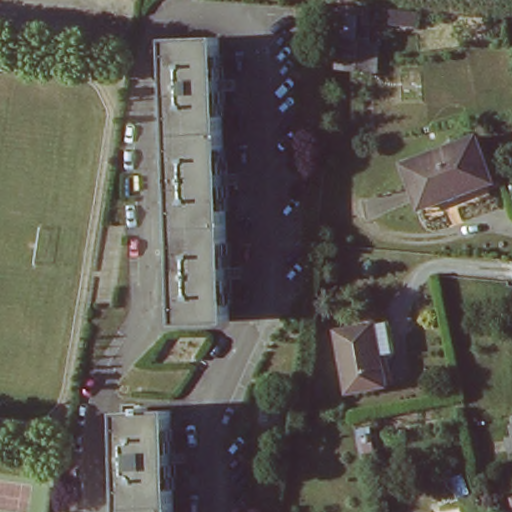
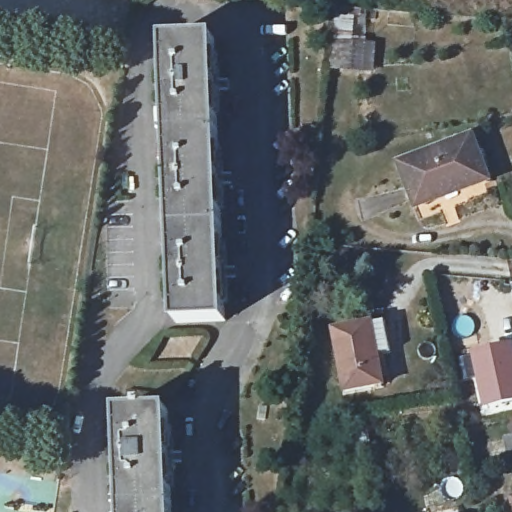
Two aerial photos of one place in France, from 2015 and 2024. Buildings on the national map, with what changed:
unchanged [(166,41),(214,39),(226,321),(177,323),(166,41)]
unchanged [(331,40),(366,44),(363,70),(328,67),(331,40)]
unchanged [(438,201),(417,209),(401,165),(474,137),(488,175),(490,181),(438,201)]
unchanged [(334,330),(378,322),(383,347),(378,348),(385,385),(346,392),(334,330)]
new [(485,410),(476,377),(465,380),(459,357),(512,339),(512,403),(485,410)]
unchanged [(169,411),(172,512),(123,512),(120,413),(169,411)]
unchanged [(509,438),(512,438),(512,452),(509,438)]

